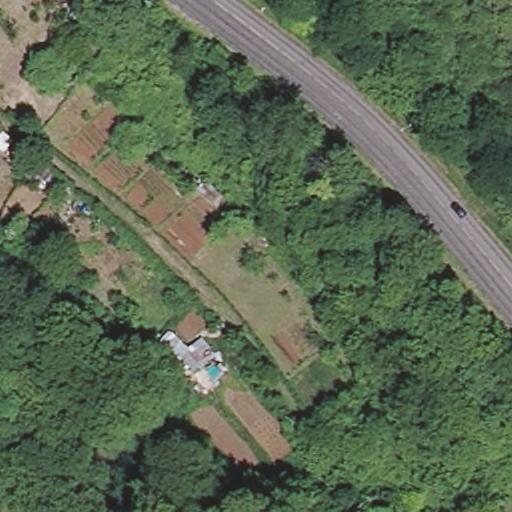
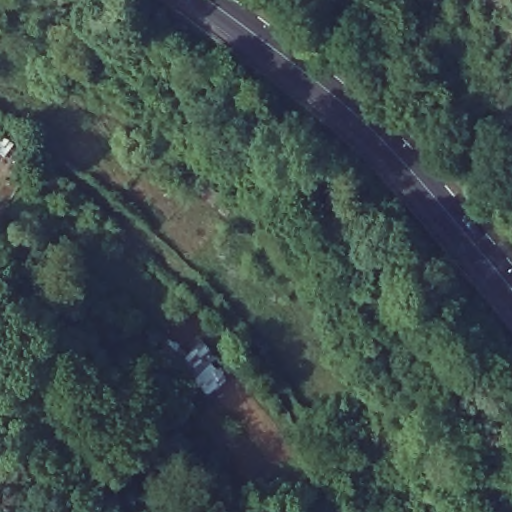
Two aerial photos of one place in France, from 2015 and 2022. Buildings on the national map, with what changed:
unchanged [(170,332),(189,349),(202,339),(217,357),(195,375),(182,360),(176,365),(157,345),(170,332)]

